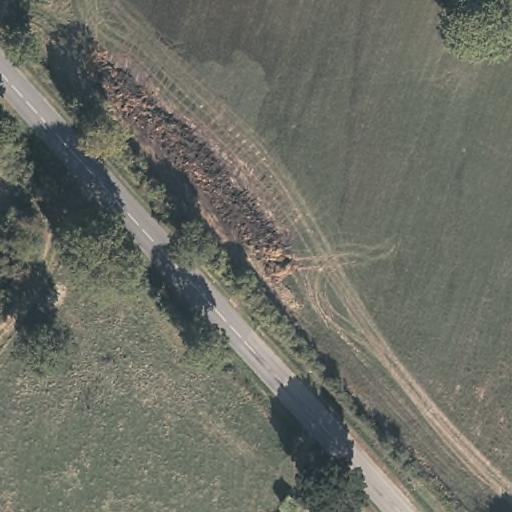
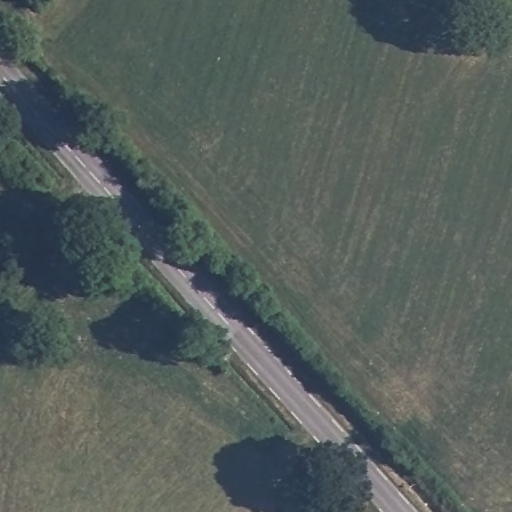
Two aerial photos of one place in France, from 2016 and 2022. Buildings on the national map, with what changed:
unchanged [(298,498),(298,502),(297,506),(295,508),(288,510),(280,506),(288,492),(298,498)]

